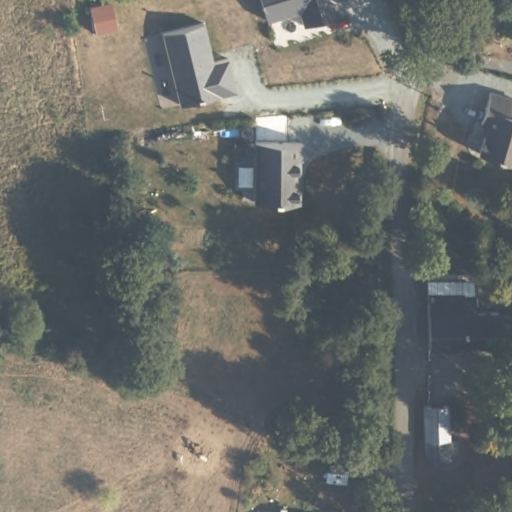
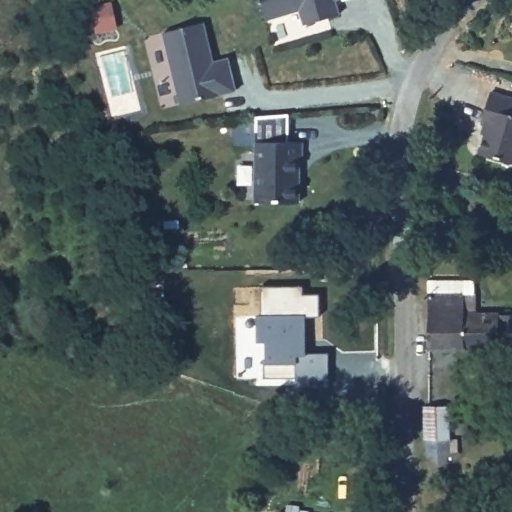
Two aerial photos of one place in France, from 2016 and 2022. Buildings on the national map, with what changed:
unchanged [(336,0),(339,14),(304,25),(300,11),(267,21),(261,0),(336,0)]
unchanged [(161,33),(203,23),(212,61),(230,58),(237,91),(179,105),(161,33)]
unchanged [(478,154),(486,126),(480,124),(488,94),(512,100),(512,164),(478,154)]
unchanged [(299,200),(255,201),(255,140),(301,139),(302,157),(299,157),(299,170),(299,179),(299,200)]
unchanged [(479,281),(479,294),(479,312),(503,312),(503,314),(512,314),(512,347),(504,346),(504,349),(433,348),(432,280),(459,280),(479,281)]
new [(264,359),(262,341),(255,341),(255,313),(259,313),(260,285),(303,284),(304,292),(320,292),(319,315),(305,314),(307,351),(327,352),(327,387),(297,387),(297,376),(262,376),(264,359)]
unchanged [(424,401),(456,401),(460,403),(460,411),(457,414),(449,415),(449,434),(455,435),(456,451),(425,451),(424,401)]
unchanged [(314,512),(277,512),(277,507),(314,512)]

